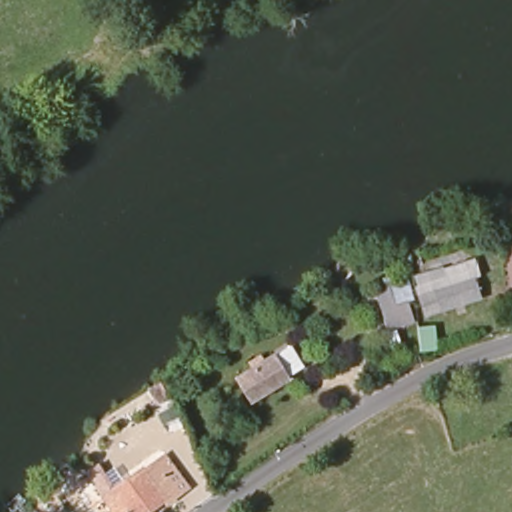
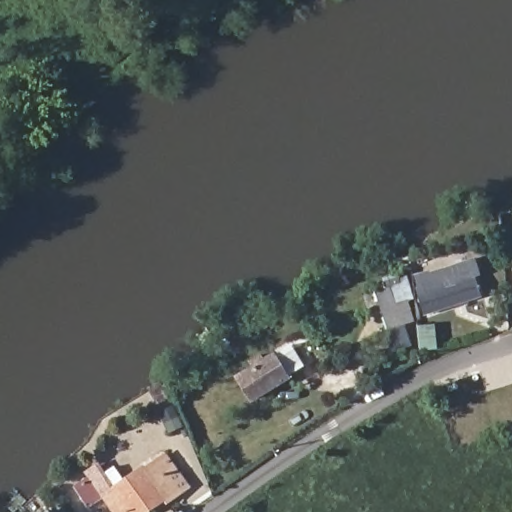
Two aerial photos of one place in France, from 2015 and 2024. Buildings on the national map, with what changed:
unchanged [(435,273),(432,264),(446,260),(450,271),(469,264),(473,275),(474,278),(479,276),(485,296),(430,314),(422,302),(418,279),(435,273)]
unchanged [(384,329),(376,288),(392,285),(389,274),(400,272),(407,302),(411,323),(384,329)]
unchanged [(288,349),(300,377),(243,402),(231,376),(288,349)]
unchanged [(112,497),(174,453),(198,485),(175,501),(170,496),(146,512),(122,512),(112,497)]

